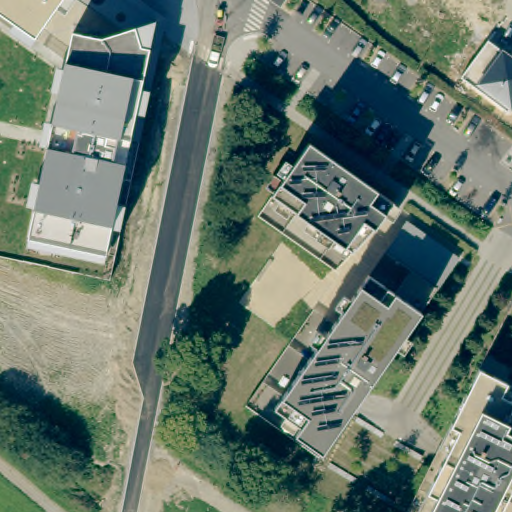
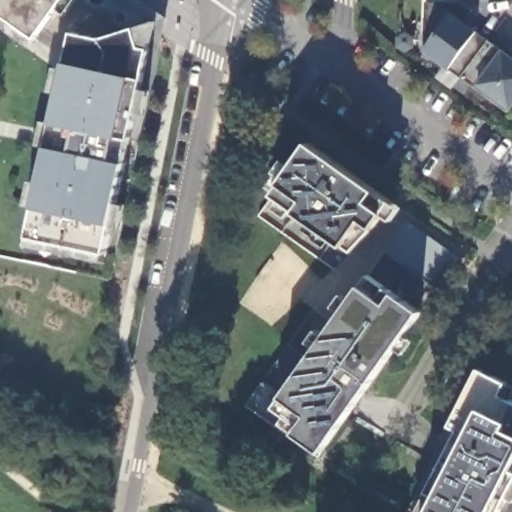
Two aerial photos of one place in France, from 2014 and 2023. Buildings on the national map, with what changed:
unchanged [(11,32),(15,24),(0,13),(0,0),(64,0),(32,46),(11,32)]
new [(423,50),(435,33),(425,24),(426,3),(463,3),(471,10),(464,24),(478,33),(488,40),(461,76),(423,50)]
unchanged [(28,245),(40,208),(36,207),(49,144),(66,63),(73,33),(104,38),(156,21),(142,90),(151,93),(147,114),(137,113),(117,204),(126,205),(121,230),(112,228),(106,262),(28,245)]
unchanged [(508,113),(461,76),(488,40),(504,51),(512,57),(512,108),(511,110),(508,113)]
unchanged [(393,201),(386,210),(374,228),(353,251),(272,194),(309,141),(378,190),(393,200),(393,201)]
unchanged [(456,262),(455,263),(455,264),(438,288),(385,251),(403,224),(456,262)]
unchanged [(421,311),(363,394),(351,410),(351,411),(327,444),(275,407),(369,274),(421,311)]
unchanged [(512,399),(512,467),(512,469),(512,486),(499,512),(427,512),(435,496),(427,491),(458,429),(450,425),(473,379),(479,367),(507,382),(501,394),(512,399)]

